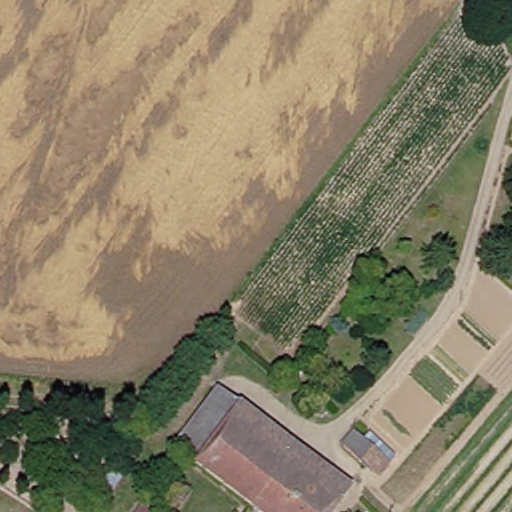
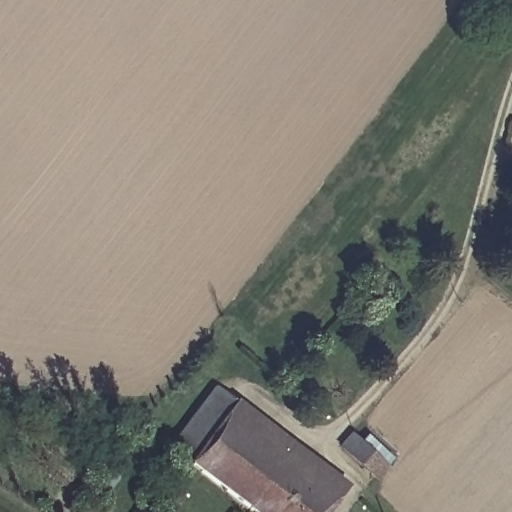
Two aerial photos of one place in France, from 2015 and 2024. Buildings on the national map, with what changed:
unchanged [(325,512),(250,512),(187,463),(190,460),(170,445),(212,388),(234,404),(234,402),(288,445),(280,457),(312,483),(322,470),(329,476),(343,487),(325,511),(325,512)]
unchanged [(377,463),(365,476),(331,445),(343,431),(377,463)]

